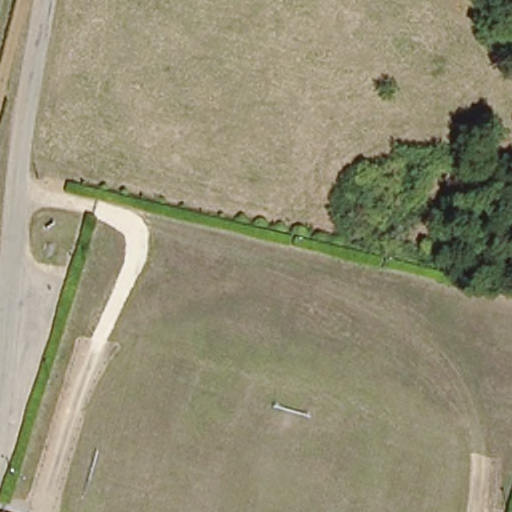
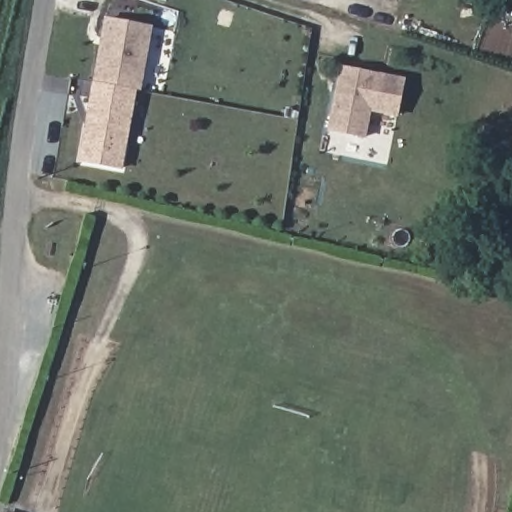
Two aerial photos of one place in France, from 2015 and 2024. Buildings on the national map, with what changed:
new [(139,91),(124,169),(79,162),(93,83),(105,17),(154,25),(142,91),(139,91)]
new [(367,138),(328,131),(341,67),(407,78),(400,116),(372,112),(367,138)]

